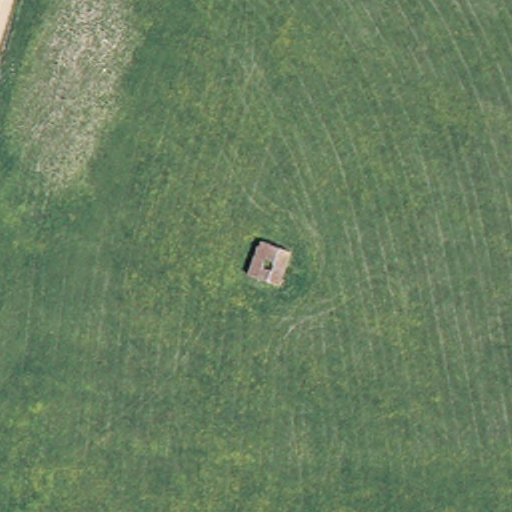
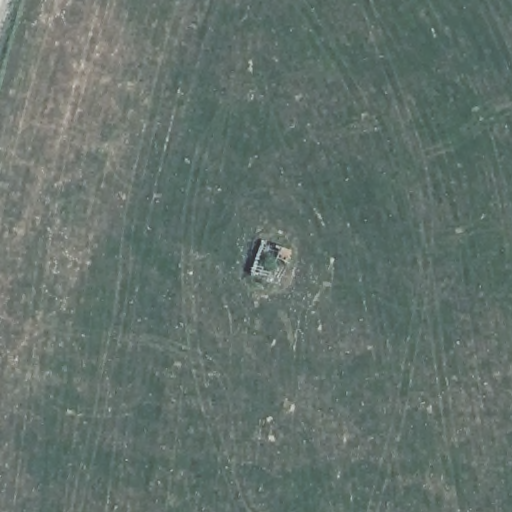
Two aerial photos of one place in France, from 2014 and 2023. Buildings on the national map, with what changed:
unchanged [(260,243),(296,259),(278,291),(250,276),(260,243)]

